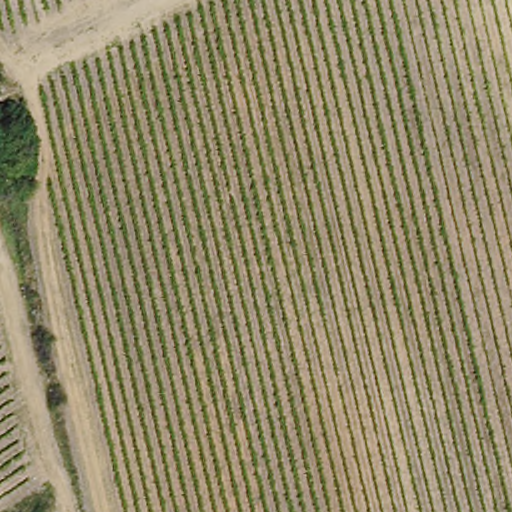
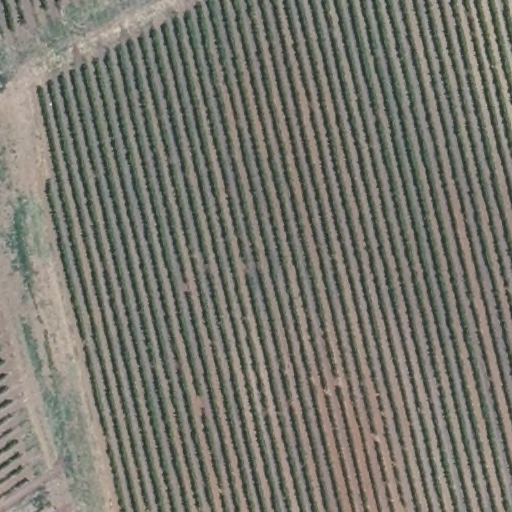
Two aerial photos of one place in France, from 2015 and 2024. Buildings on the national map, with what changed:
[]

